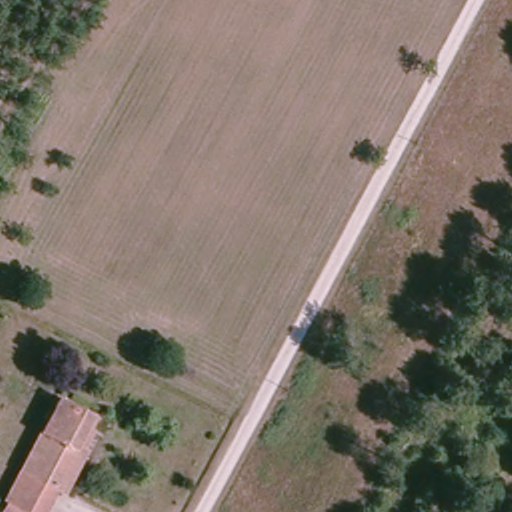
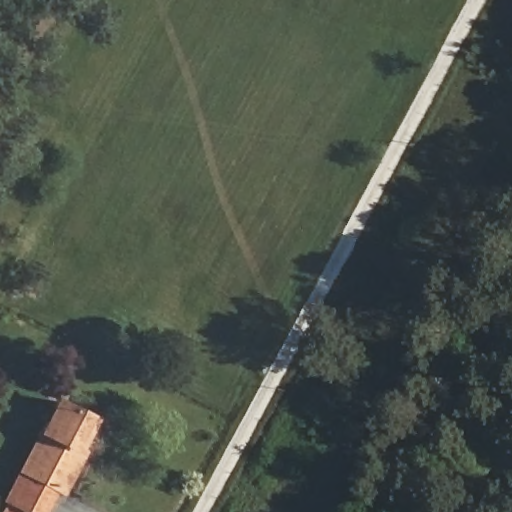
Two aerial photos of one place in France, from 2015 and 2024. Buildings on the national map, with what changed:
unchanged [(3,507),(10,494),(62,395),(91,409),(76,442),(83,445),(65,484),(56,480),(41,510),(39,512),(12,512),(3,507)]

